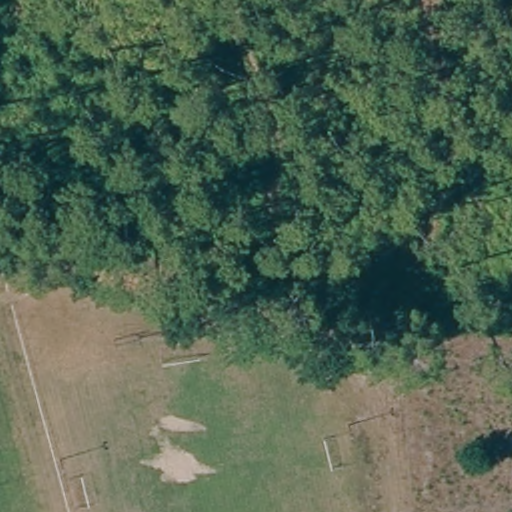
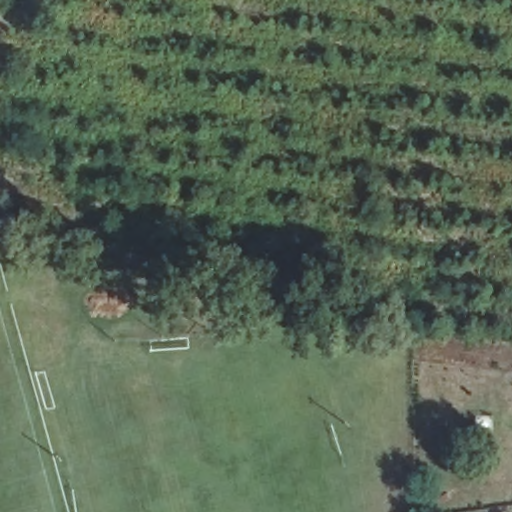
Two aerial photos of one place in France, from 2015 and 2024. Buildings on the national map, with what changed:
[]

